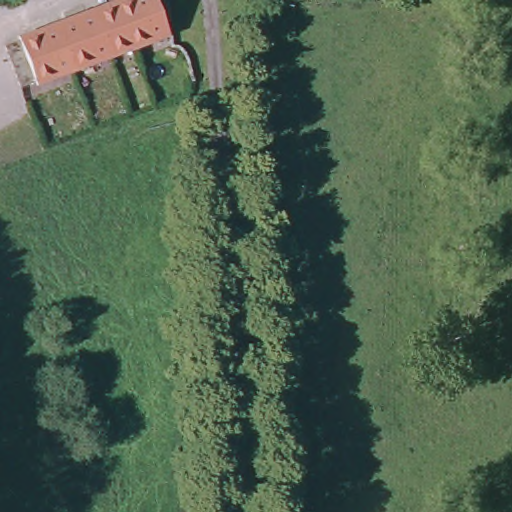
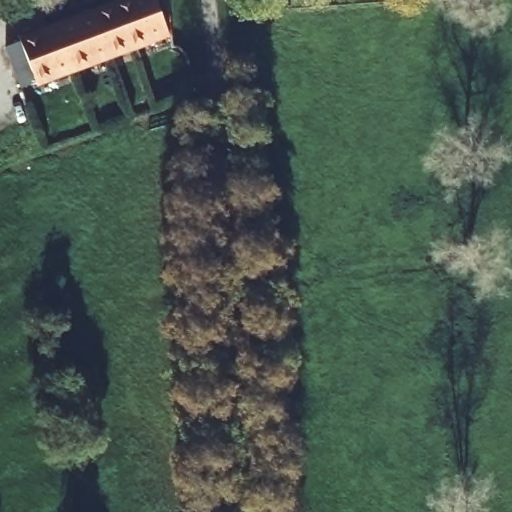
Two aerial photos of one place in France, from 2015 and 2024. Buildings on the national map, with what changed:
unchanged [(40,73),(26,79),(12,42),(26,37),(25,33),(113,0),(162,0),(173,29),(42,79),(40,73)]

